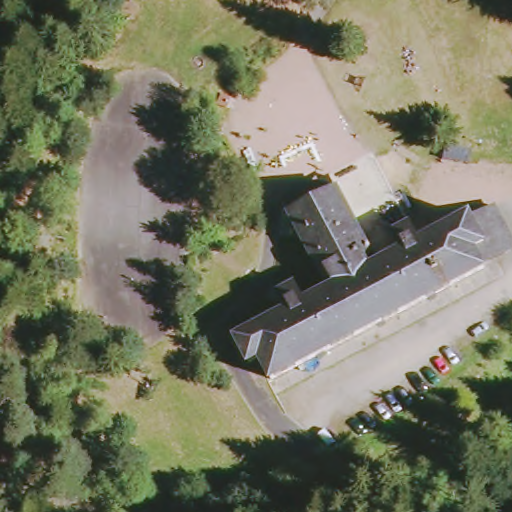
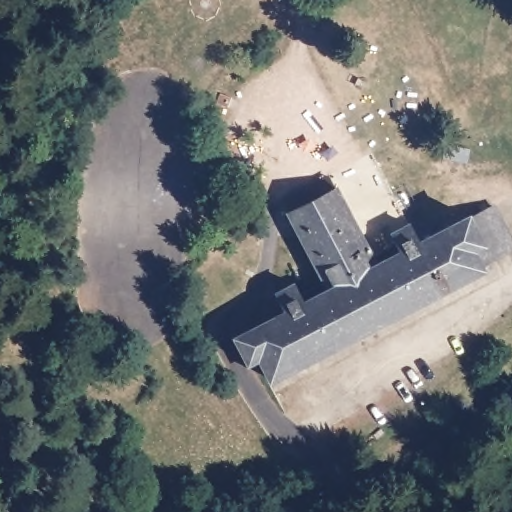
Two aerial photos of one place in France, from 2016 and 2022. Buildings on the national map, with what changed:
unchanged [(406,255),(400,240),(414,232),(420,247),(498,208),(512,238),(512,252),(483,266),(484,272),(275,382),(262,361),(252,367),(238,343),(289,317),(280,302),(297,295),(304,308),(334,291),(297,221),(289,207),(334,186),(340,197),(376,269),(406,255)]

